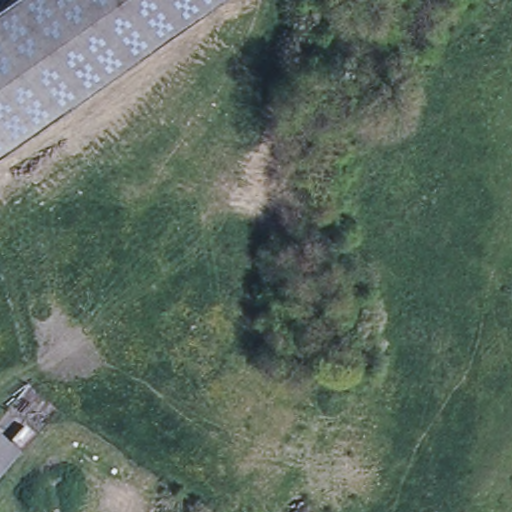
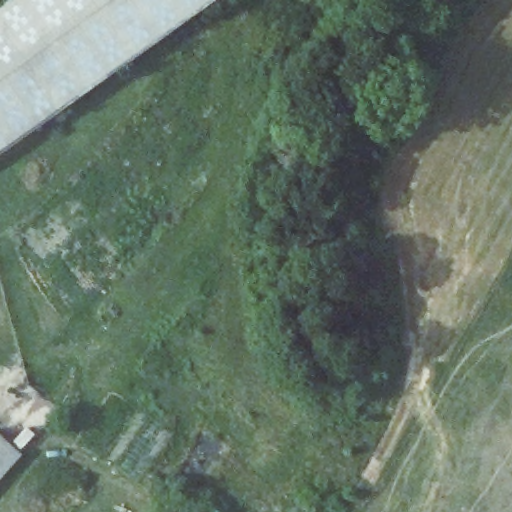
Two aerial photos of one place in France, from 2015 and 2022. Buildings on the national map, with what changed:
unchanged [(221,0),(0,155),(0,8),(11,0),(221,0)]
unchanged [(19,458),(0,479),(0,439),(19,458)]

